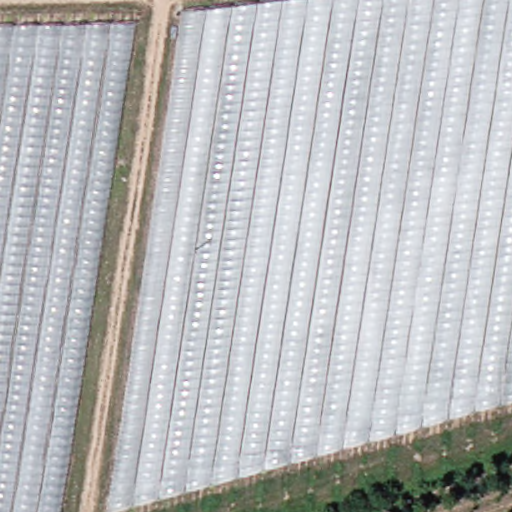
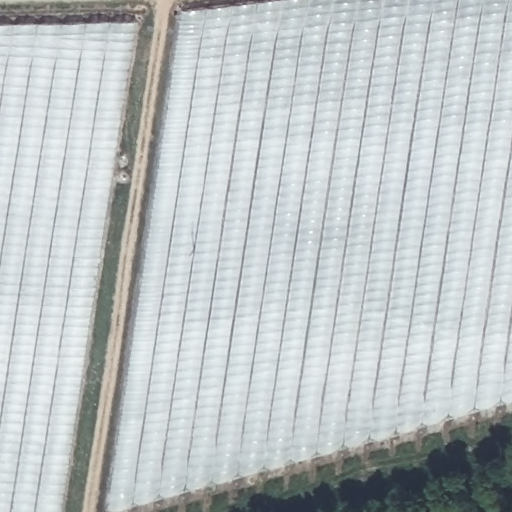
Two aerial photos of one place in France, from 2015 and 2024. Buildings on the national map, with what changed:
unchanged [(186,7),(254,0),(512,0),(512,398),(110,506),(186,7)]
unchanged [(142,24),(67,512),(0,512),(0,27),(142,24)]

